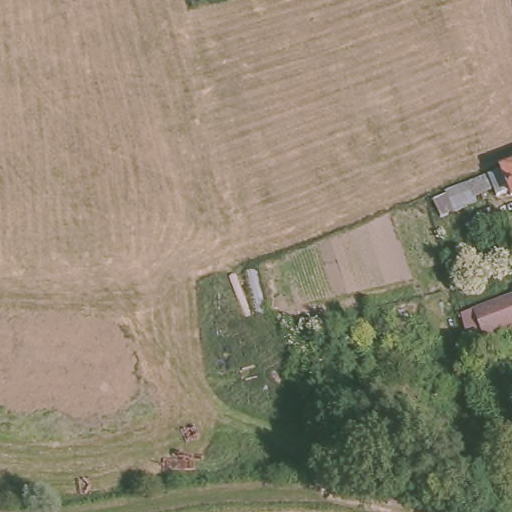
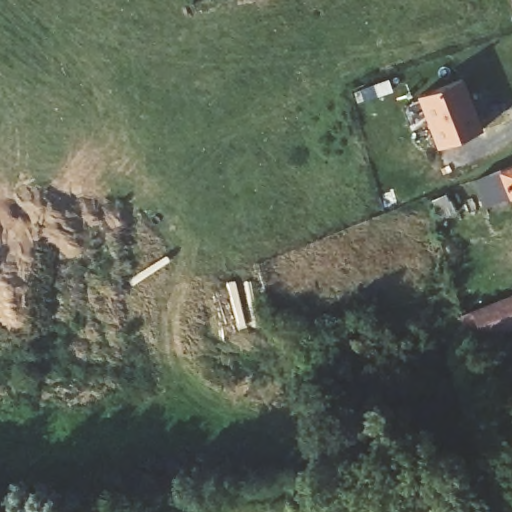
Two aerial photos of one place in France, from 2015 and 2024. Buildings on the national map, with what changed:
new [(461,86),(469,107),(466,107),(469,119),(473,117),(480,137),(437,153),(418,101),(461,86)]
unchanged [(512,168),(512,195),(499,200),(497,191),(491,176),(512,168)]
demolished [(471,216),(476,231),(440,241),(436,225),(471,216)]
unchanged [(460,312),(512,295),(512,323),(468,338),(460,312)]

